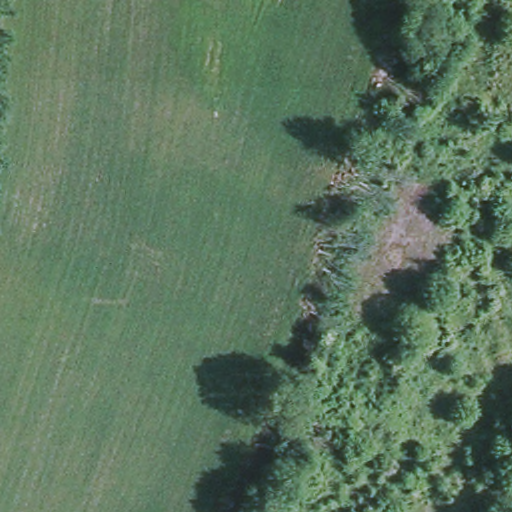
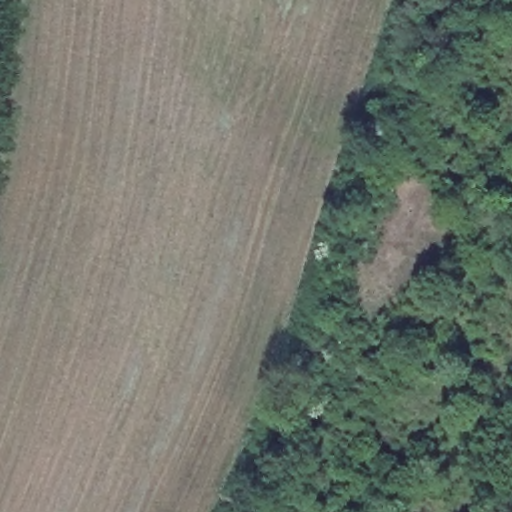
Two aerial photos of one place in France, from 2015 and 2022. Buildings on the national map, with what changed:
[]

